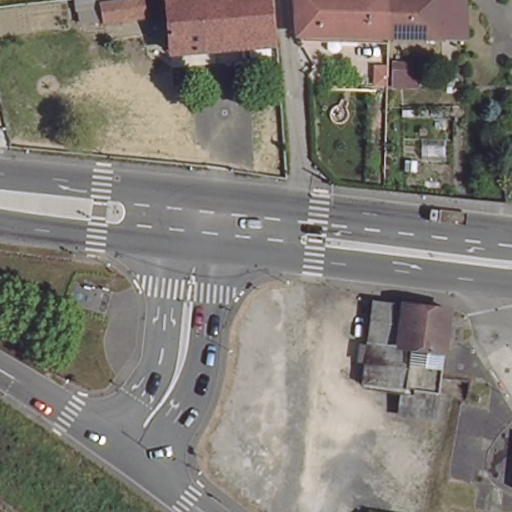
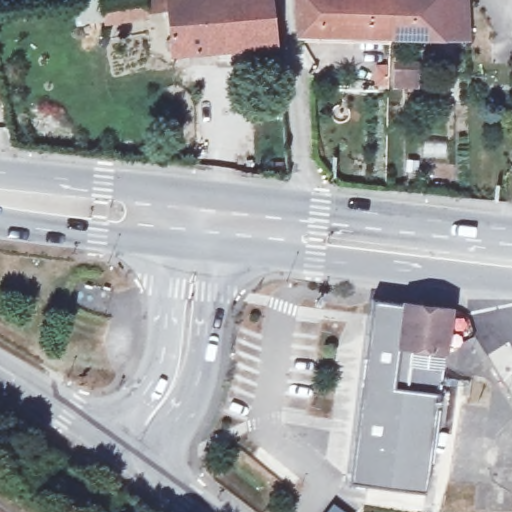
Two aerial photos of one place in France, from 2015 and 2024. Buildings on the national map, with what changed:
unchanged [(270,45),(170,56),(163,16),(101,27),(98,7),(145,0),(264,0),(270,45)]
unchanged [(387,32),(297,32),(294,0),(387,0),(387,32)]
unchanged [(387,0),(462,0),(462,34),(387,32),(387,0)]
unchanged [(445,317),(435,400),(360,388),(371,305),(445,317)]
new [(422,491),(348,481),(360,388),(435,400),(422,491)]
new [(324,512),(330,505),(338,512),(324,512)]

